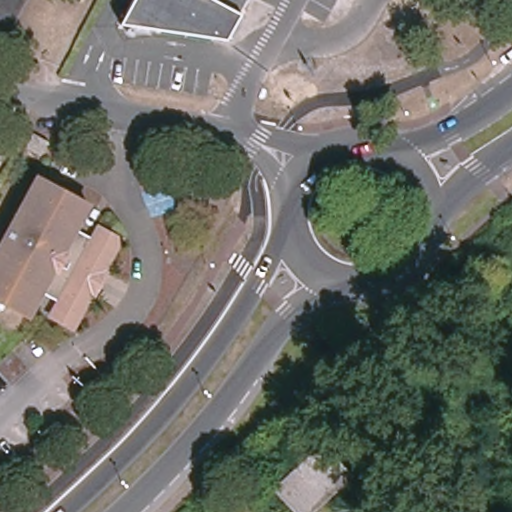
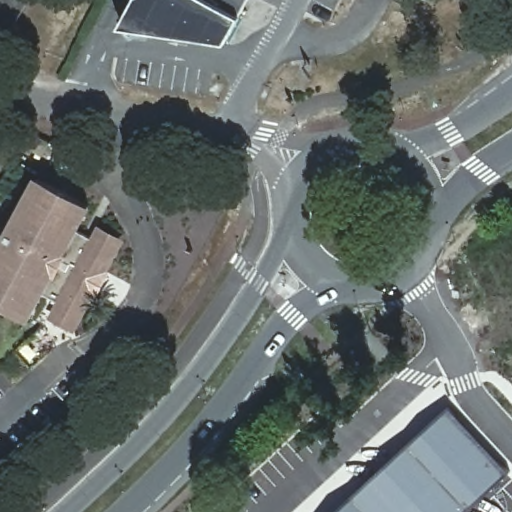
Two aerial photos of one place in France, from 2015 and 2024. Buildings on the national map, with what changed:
unchanged [(232,26),(223,24),(215,28),(210,37),(121,24),(134,0),(247,0),(232,26)]
unchanged [(77,229),(93,238),(99,227),(123,241),(75,329),(51,315),(59,301),(42,292),(30,316),(0,301),(0,247),(37,178),(90,206),(77,229)]
new [(336,512),(446,410),(503,472),(460,512),(336,512)]
demolished [(298,483),(315,501),(325,493),(328,497),(312,512),(298,512),(276,489),(323,447),(330,454),(298,483)]
demolished [(351,476),(328,497),(325,493),(315,501),(298,483),(330,454),(351,476)]

